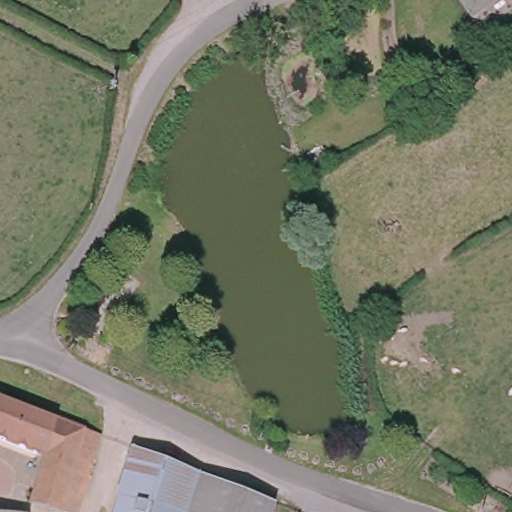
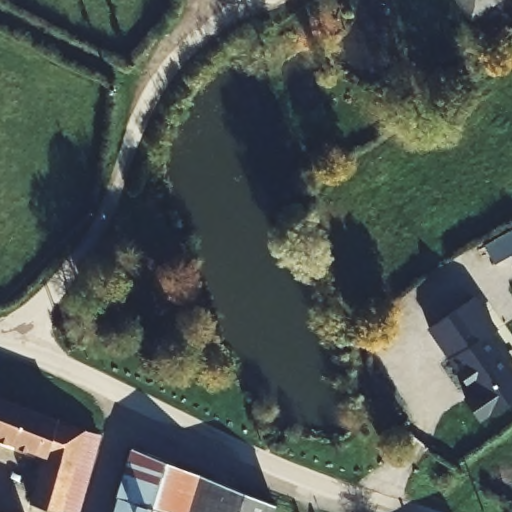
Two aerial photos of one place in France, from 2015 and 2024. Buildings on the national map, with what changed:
unchanged [(472,16),(460,0),(494,0),(472,16)]
new [(484,245),(512,229),(512,255),(494,265),(484,245)]
new [(488,335),(512,370),(512,397),(480,418),(466,398),(474,392),(429,328),(474,297),(496,330),(488,335)]
unchanged [(64,512),(36,503),(51,455),(45,455),(0,437),(0,394),(62,418),(104,435),(82,512),(64,512)]
unchanged [(133,448),(274,505),(271,512),(167,512),(118,497),(133,448)]
unchanged [(113,512),(118,497),(167,512),(113,512)]

